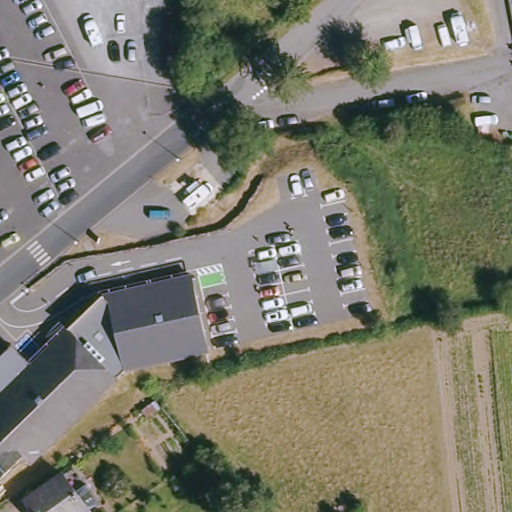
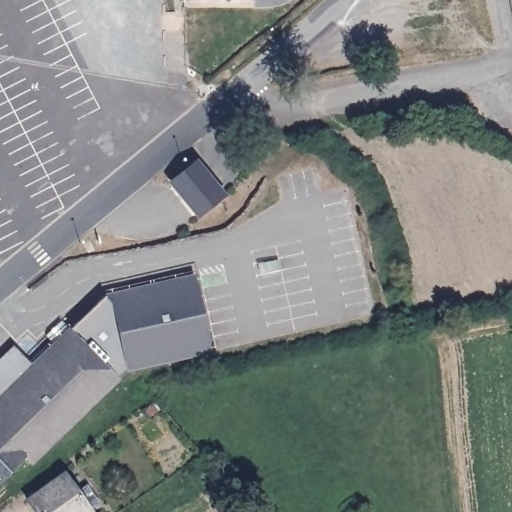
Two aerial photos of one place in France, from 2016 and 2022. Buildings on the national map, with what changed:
new [(167,182),(198,159),(226,194),(197,216),(167,182)]
unchanged [(10,345),(27,364),(66,328),(101,295),(191,276),(209,352),(125,371),(123,368),(115,378),(117,380),(30,465),(22,455),(0,477),(0,354),(10,345)]
unchanged [(80,490),(90,483),(103,501),(93,509),(88,512),(40,512),(30,497),(66,472),(80,490)]

